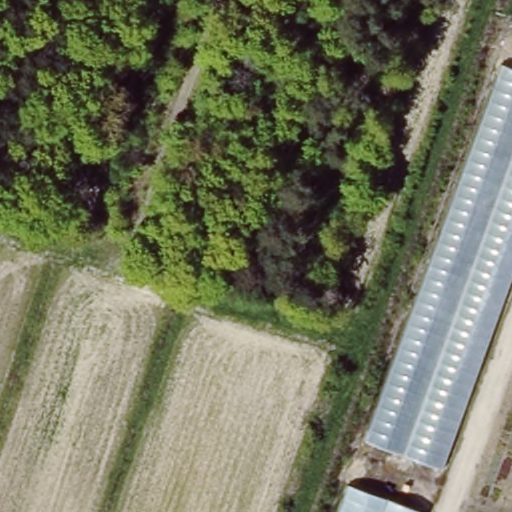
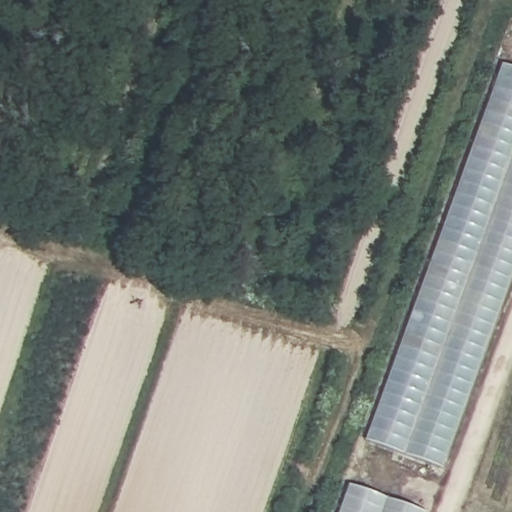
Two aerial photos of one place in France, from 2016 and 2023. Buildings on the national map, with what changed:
unchanged [(498,67),(512,72),(512,276),(440,470),(367,441),(498,67)]
unchanged [(350,482),(427,512),(340,512),(350,482)]

